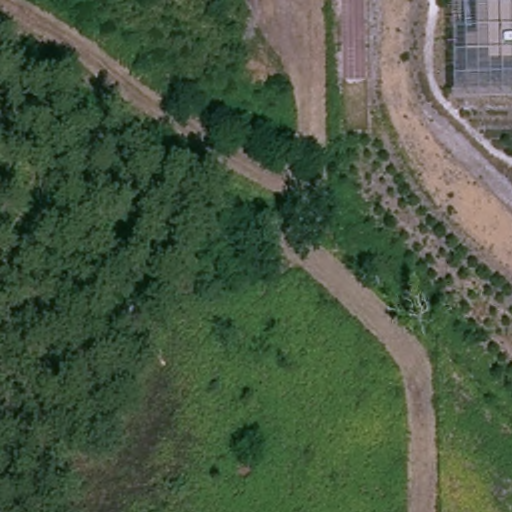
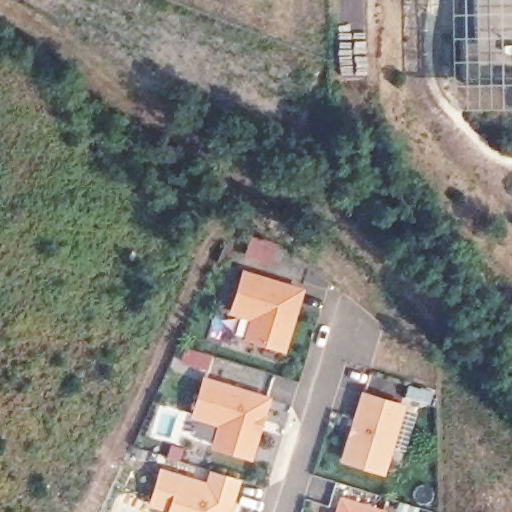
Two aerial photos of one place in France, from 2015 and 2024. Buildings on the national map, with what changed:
unchanged [(473,30),(485,30),(484,0),(512,0),(512,69),(473,69),(473,30)]
new [(305,289),(285,352),(243,340),(249,320),(227,313),(243,269),(305,289)]
new [(272,397),(252,461),(211,448),(217,426),(190,418),(202,376),(272,397)]
new [(407,403),(385,475),(339,461),(361,391),(407,403)]
new [(160,467),(204,481),(208,469),(242,479),(231,512),(166,512),(167,511),(149,506),(160,467)]
new [(340,494),(387,509),(386,512),(334,512),(340,494)]

